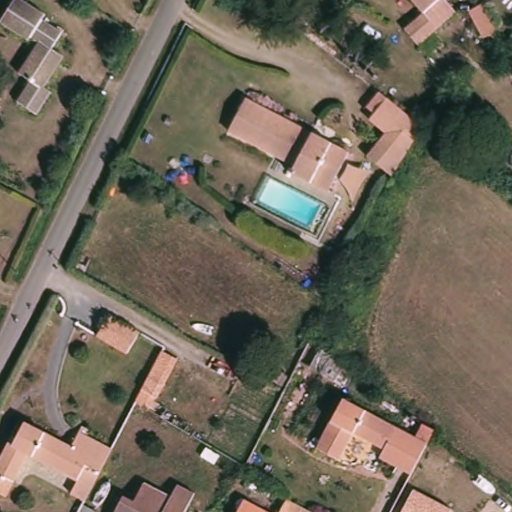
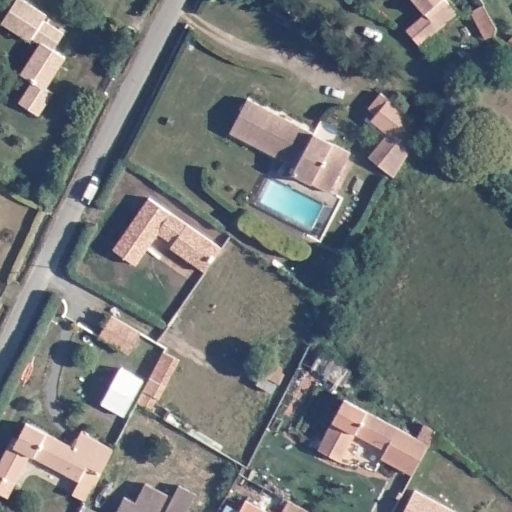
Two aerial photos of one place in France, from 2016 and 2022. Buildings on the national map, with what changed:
unchanged [(46,12),(43,17),(63,30),(52,46),(64,55),(44,85),(52,90),(38,112),(18,100),(31,79),(19,71),(29,56),(39,40),(31,35),(29,39),(1,20),(14,0),(27,0),(46,12)]
unchanged [(420,44),(406,29),(426,12),(416,0),(448,0),(457,11),(420,44)]
unchanged [(496,27),(495,32),(485,37),(470,10),(483,4),(496,27)]
unchanged [(393,175),(368,155),(387,132),(371,119),(376,113),(368,107),(381,91),(424,125),(393,175)]
unchanged [(312,181),(293,172),(297,165),(230,130),(247,97),(350,151),(335,181),(329,191),(312,181)]
new [(149,196),(221,246),(205,270),(171,246),(174,241),(158,230),(136,263),(113,247),(149,196)]
unchanged [(339,273),(330,270),(336,256),(344,260),(339,273)]
unchanged [(141,332),(128,353),(98,335),(111,314),(141,332)]
unchanged [(184,360),(154,410),(137,398),(165,350),(184,360)]
unchanged [(266,362),(284,373),(278,382),(261,372),(266,362)]
unchanged [(381,457),(386,448),(355,432),(340,460),(318,447),(344,398),(417,436),(424,423),(436,430),(429,443),(412,473),(381,457)]
unchanged [(80,479),(30,453),(8,496),(0,492),(0,462),(11,441),(14,435),(18,437),(26,421),(73,445),(80,431),(113,448),(101,471),(86,500),(72,493),(80,479)]
unchanged [(136,500),(145,482),(173,496),(179,483),(196,493),(186,512),(116,512),(125,495),(136,500)]
unchanged [(454,508),(453,512),(402,512),(415,487),(454,508)]
unchanged [(271,512),(239,512),(246,498),(271,512)]
unchanged [(315,512),(281,512),(288,498),(315,512)]

